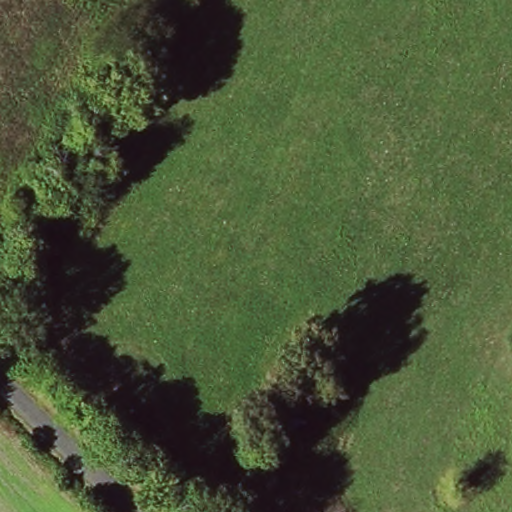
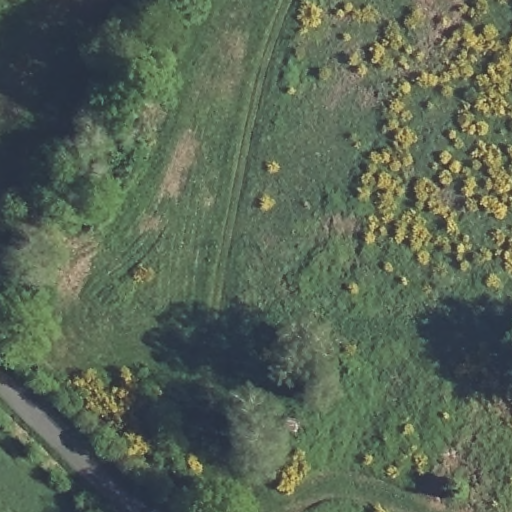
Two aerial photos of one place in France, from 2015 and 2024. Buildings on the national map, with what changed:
[]

